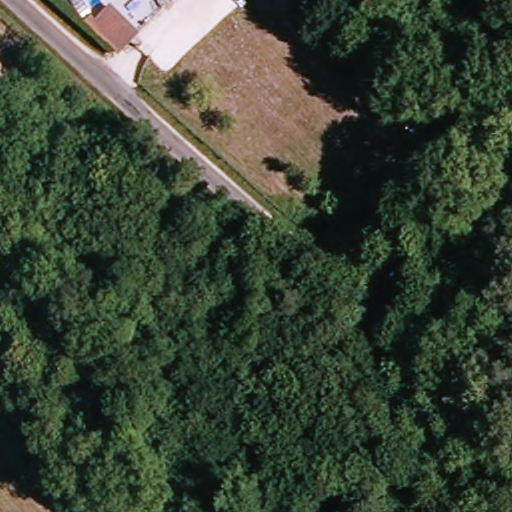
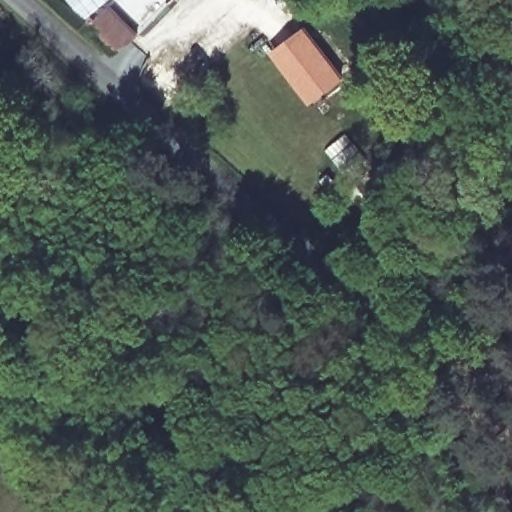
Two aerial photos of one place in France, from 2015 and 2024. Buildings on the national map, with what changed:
unchanged [(89,13),(79,0),(107,0),(89,13)]
unchanged [(139,38),(118,58),(88,28),(109,6),(139,38)]
new [(307,41),(337,83),(307,104),(277,62),(307,41)]

